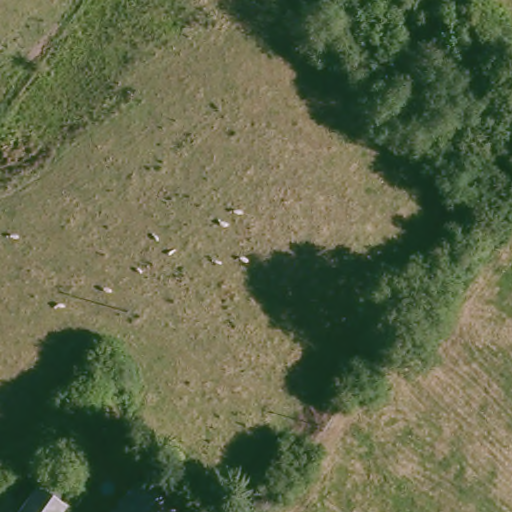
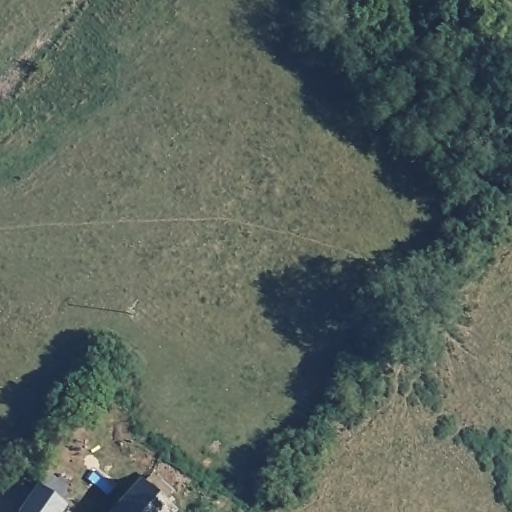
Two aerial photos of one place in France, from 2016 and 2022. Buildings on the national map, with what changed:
unchanged [(63,512),(18,512),(43,483),(50,474),(68,489),(62,497),(70,504),(63,512)]
unchanged [(155,495),(148,505),(158,512),(107,512),(129,487),(135,492),(142,483),(155,495)]

